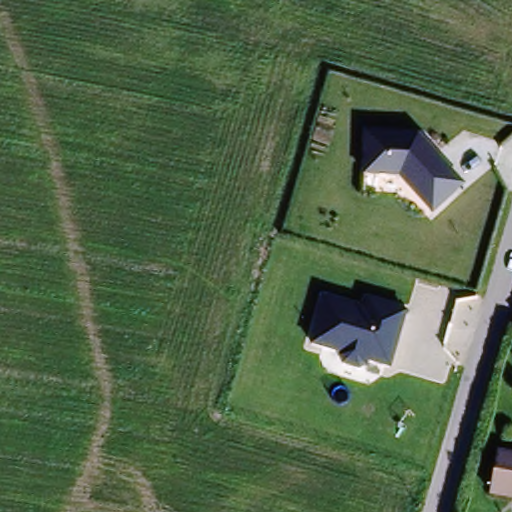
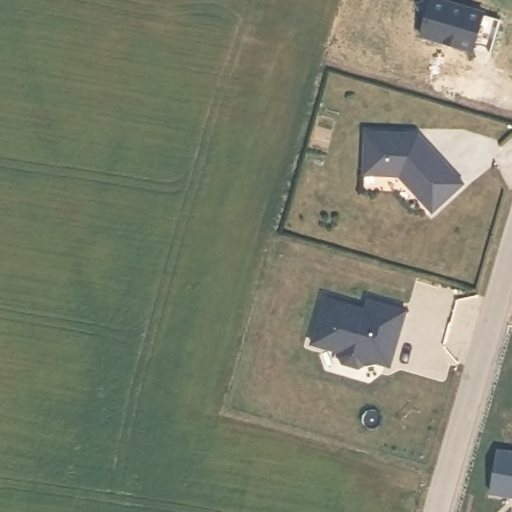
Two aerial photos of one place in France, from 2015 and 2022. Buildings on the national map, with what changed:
new [(443,0),(482,10),(470,49),(422,38),(430,0),(443,0)]
unchanged [(419,134),(462,187),(428,213),(400,179),(362,176),(364,131),(419,134)]
unchanged [(364,307),(366,298),(406,309),(389,369),(364,364),(356,369),(342,366),(337,359),(338,354),(309,344),(323,297),(364,307)]
unchanged [(512,493),(487,489),(494,447),(512,450),(512,493)]

